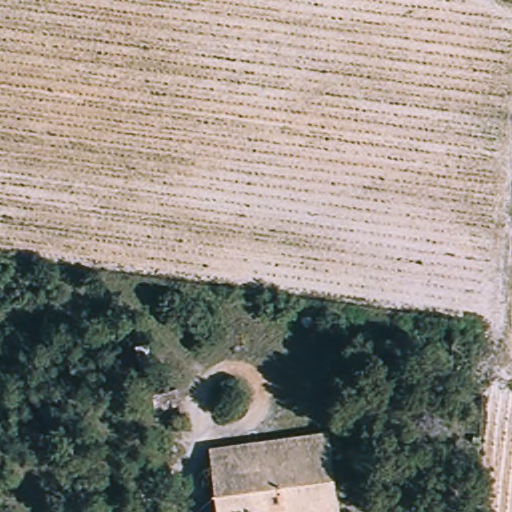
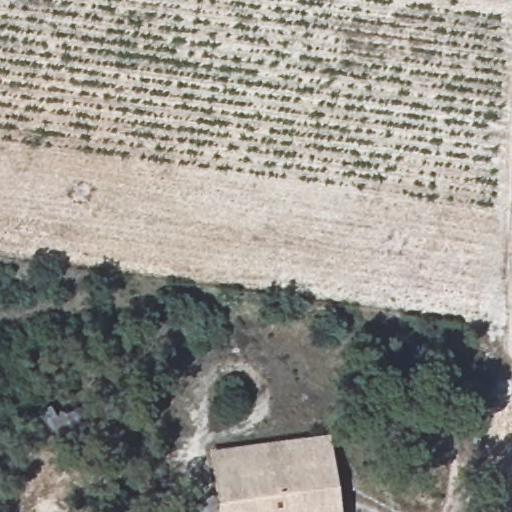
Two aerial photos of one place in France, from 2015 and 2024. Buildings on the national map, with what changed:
unchanged [(325,450),(329,512),(222,512),(220,459),(325,450)]

